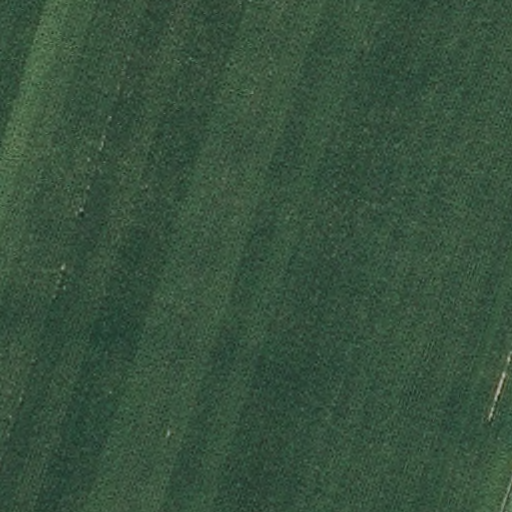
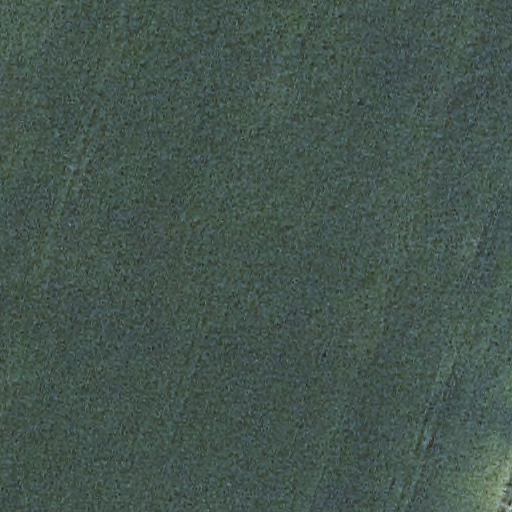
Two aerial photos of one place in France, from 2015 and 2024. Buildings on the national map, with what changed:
[]

